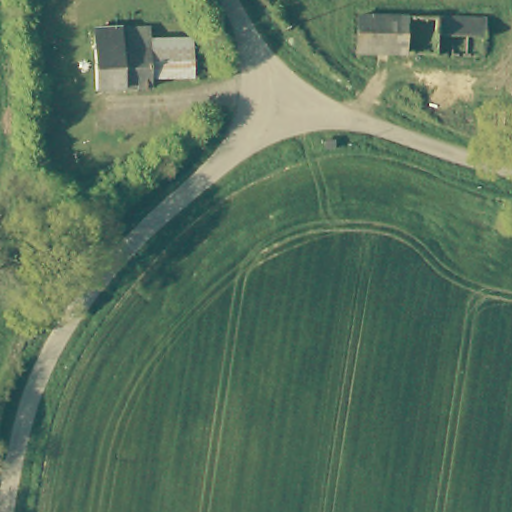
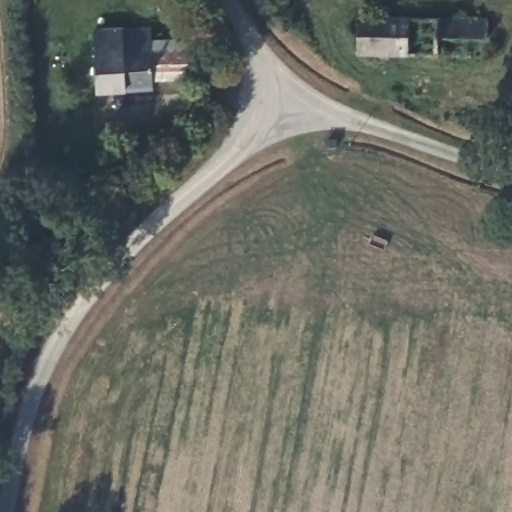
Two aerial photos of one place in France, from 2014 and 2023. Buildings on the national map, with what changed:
unchanged [(360,15),(409,15),(407,51),(358,51),(360,15)]
unchanged [(441,15),(486,17),(485,37),(440,35),(441,15)]
unchanged [(92,30),(148,28),(148,40),(149,77),(149,87),(94,89),(92,30)]
unchanged [(148,40),(190,38),(191,75),(149,77),(148,40)]

